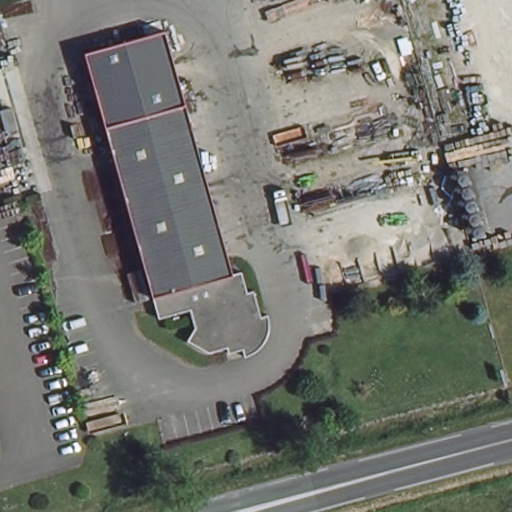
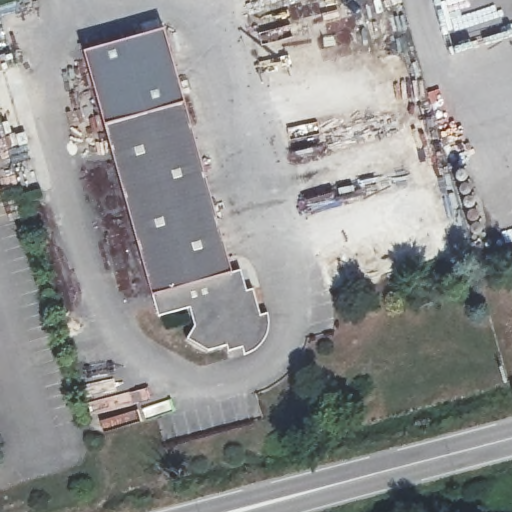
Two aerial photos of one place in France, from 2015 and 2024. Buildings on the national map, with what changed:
unchanged [(272,326),(267,336),(262,346),(255,355),(252,357),(249,350),(231,356),(228,347),(209,354),(188,340),(197,322),(192,306),(159,317),(85,54),(165,30),(236,273),(245,270),(252,290),(256,289),(265,315),(275,312),(272,326)]

